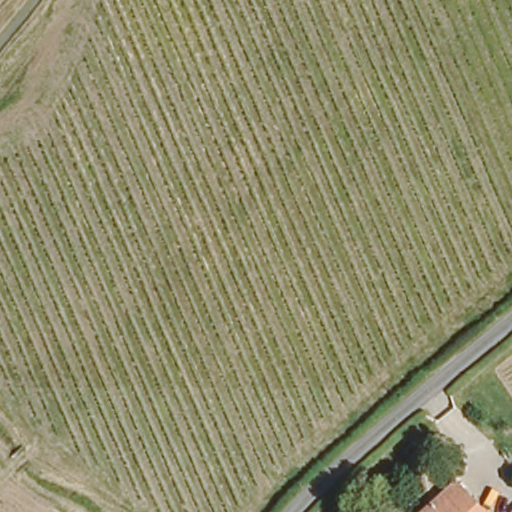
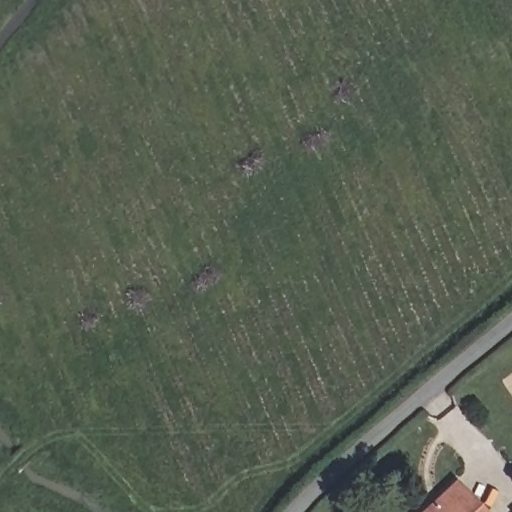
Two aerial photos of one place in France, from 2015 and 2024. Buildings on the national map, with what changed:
unchanged [(459,480),(479,512),(411,512),(411,511),(459,480)]
unchanged [(512,509),(512,512),(511,512),(510,511),(512,509)]

